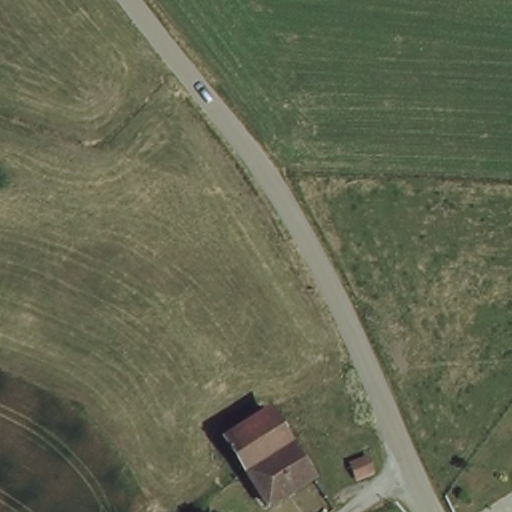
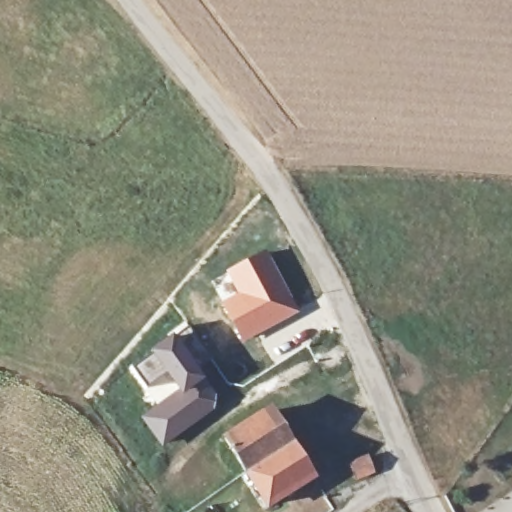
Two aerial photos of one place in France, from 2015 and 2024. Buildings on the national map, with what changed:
new [(266,248),(300,311),(241,342),(209,280),(266,248)]
new [(176,389),(148,350),(186,323),(196,337),(185,345),(214,390),(215,397),(213,409),(208,414),(161,448),(139,417),(176,389)]
unchanged [(231,433),(266,407),(289,438),(253,464),(231,433)]
unchanged [(314,470),(276,497),(253,464),(289,438),(314,470)]
unchanged [(384,462),(351,485),(336,465),(370,442),(384,462)]

